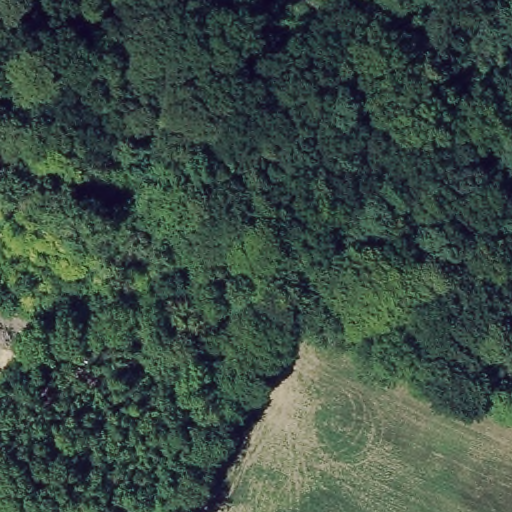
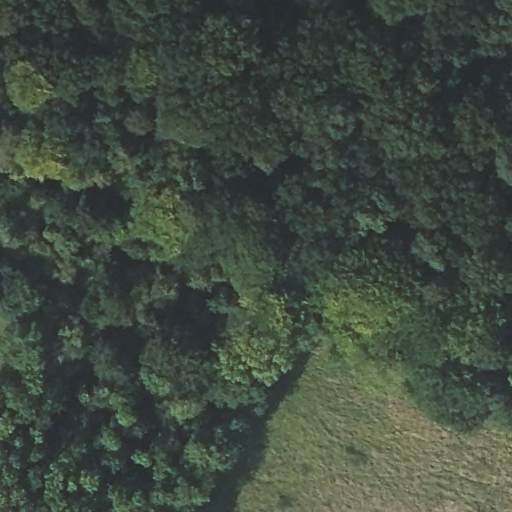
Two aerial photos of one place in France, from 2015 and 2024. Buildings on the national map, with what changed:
unchanged [(1,376),(0,378),(0,375),(1,376)]

